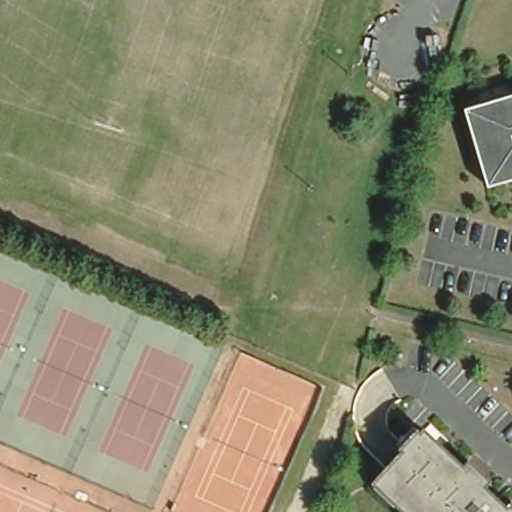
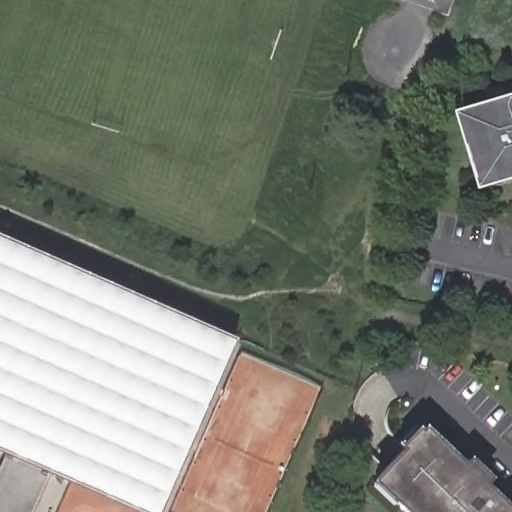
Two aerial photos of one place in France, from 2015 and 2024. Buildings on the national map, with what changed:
unchanged [(463,112),(502,101),(512,98),(512,182),(487,190),(480,167),(463,112)]
new [(137,512),(0,451),(0,240),(231,340),(156,512),(137,512)]
unchanged [(389,507),(371,490),(376,485),(372,481),(405,447),(418,432),(459,470),(464,464),(482,481),(477,487),(500,509),(506,503),(512,509),(512,512),(398,512),(391,505),(389,507)]

